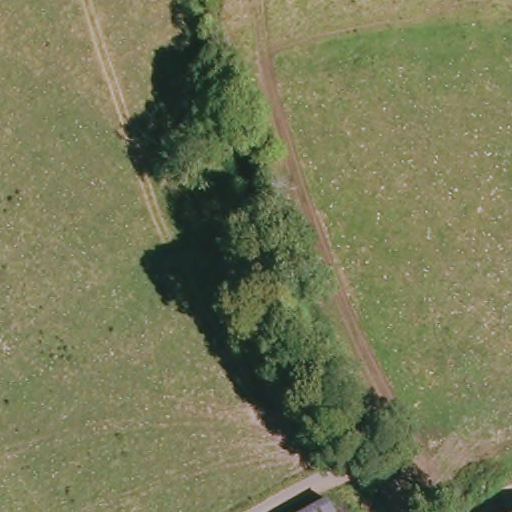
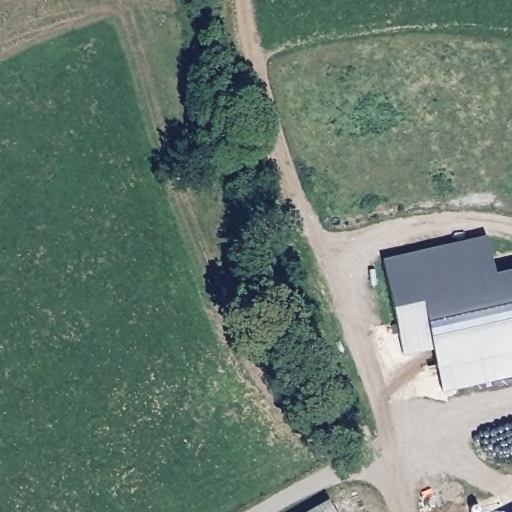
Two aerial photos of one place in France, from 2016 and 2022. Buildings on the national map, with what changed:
new [(383,261),(486,236),(494,274),(512,270),(512,375),(442,391),(433,349),(402,355),(383,261)]
unchanged [(323,512),(336,505),(339,512),(323,512)]

